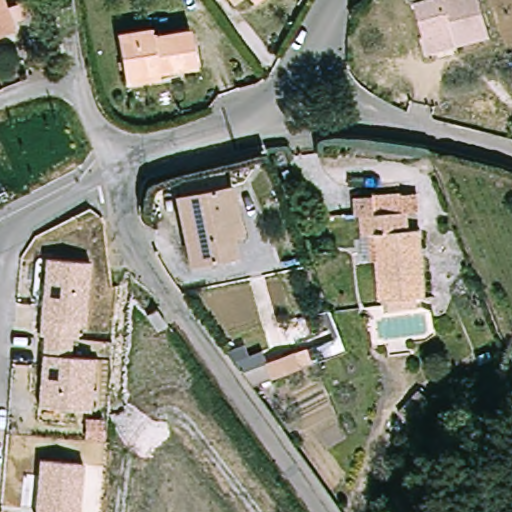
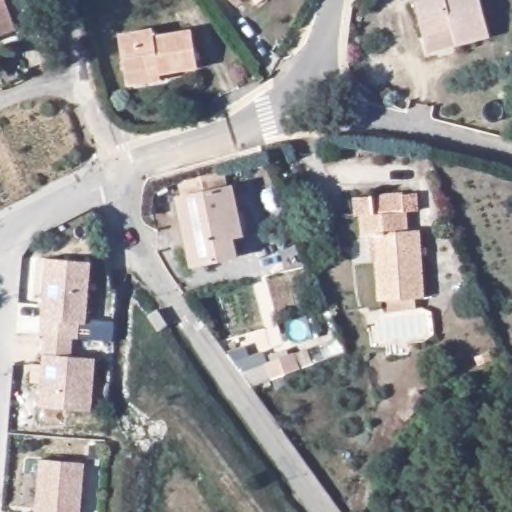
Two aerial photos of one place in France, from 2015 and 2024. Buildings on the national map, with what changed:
unchanged [(20,27),(0,36),(0,0),(8,0),(20,27)]
unchanged [(424,40),(411,0),(483,0),(493,37),(462,47),(428,58),(424,40)]
unchanged [(136,87),(133,71),(126,30),(153,26),(155,34),(190,27),(197,67),(163,74),(164,81),(136,87)]
unchanged [(242,236),(247,254),(202,270),(179,198),(187,195),(182,181),(224,165),(229,184),(240,180),(245,205),(254,234),(242,236)]
unchanged [(417,191),(418,208),(406,209),(408,229),(422,227),(428,295),(384,300),(378,256),(364,257),(361,214),(354,215),(353,196),(417,191)]
unchanged [(45,337),(40,337),(48,260),(89,265),(84,324),(80,323),(79,340),(73,340),(74,358),(94,361),(91,411),(40,406),(43,356),(45,337)]
unchanged [(344,352),(255,386),(227,352),(245,346),(250,356),(261,352),(265,365),(339,338),(344,352)]
unchanged [(83,465),(80,512),(36,512),(40,462),(83,465)]

